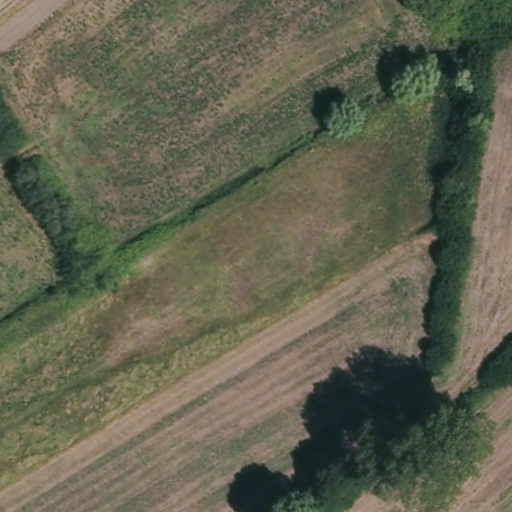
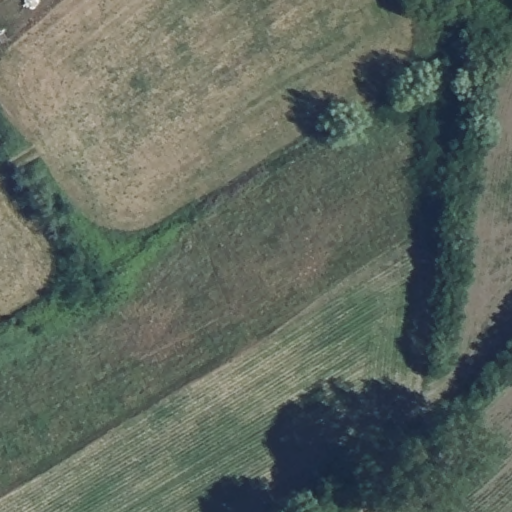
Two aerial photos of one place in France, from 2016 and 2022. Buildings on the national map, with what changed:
[]

